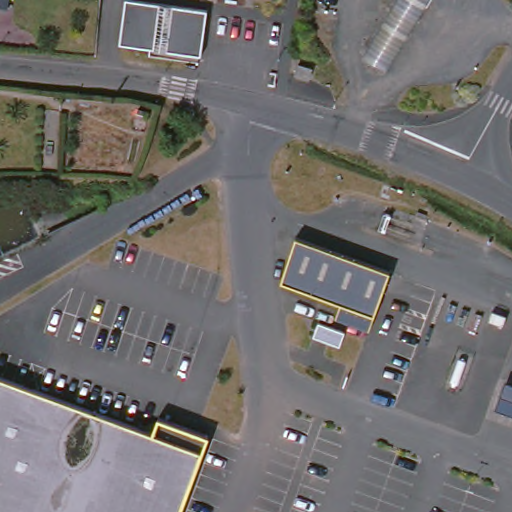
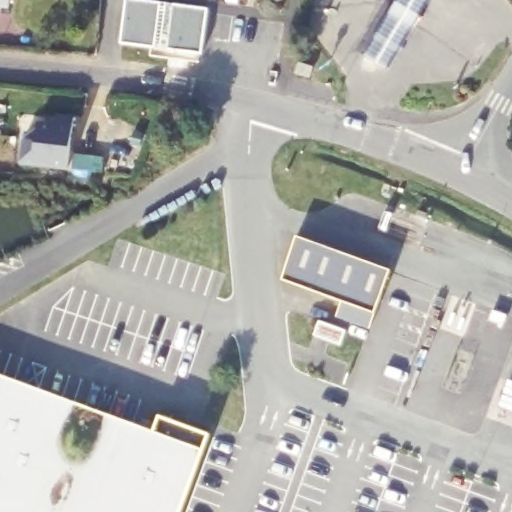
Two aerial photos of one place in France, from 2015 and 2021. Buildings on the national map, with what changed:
unchanged [(8,5),(0,3),(0,0),(8,0),(8,5)]
unchanged [(211,10),(205,55),(123,45),(129,0),(133,0),(211,10)]
unchanged [(393,0),(431,0),(386,65),(361,47),(393,0)]
unchanged [(299,66),(313,71),(309,81),(297,77),(299,66)]
new [(23,137),(36,138),(37,120),(55,122),(56,112),(73,113),(69,165),(21,161),(23,137)]
unchanged [(346,297),(284,275),(301,230),(394,265),(374,322),(341,310),(346,297)]
unchanged [(346,321),(341,336),(314,326),(319,312),(346,321)]
unchanged [(0,512),(0,377),(156,433),(161,419),(207,436),(181,512),(0,512)]
unchanged [(512,384),(512,413),(495,407),(504,381),(512,384)]

